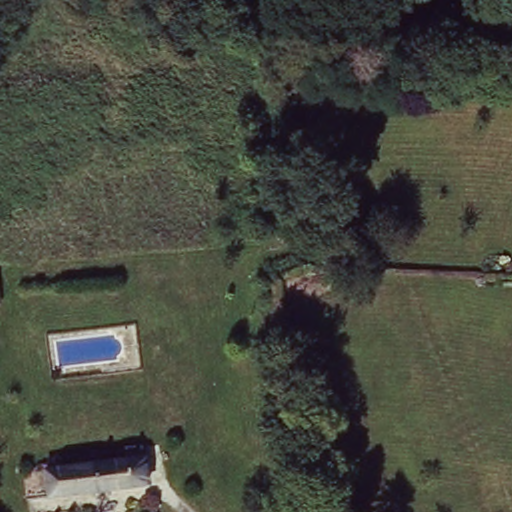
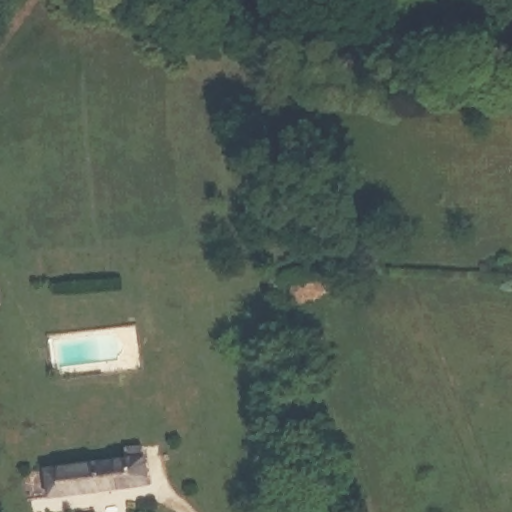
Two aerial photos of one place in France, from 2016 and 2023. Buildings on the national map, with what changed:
unchanged [(127,455),(124,442),(144,440),(145,450),(147,450),(155,482),(55,498),(49,467),(127,455)]

